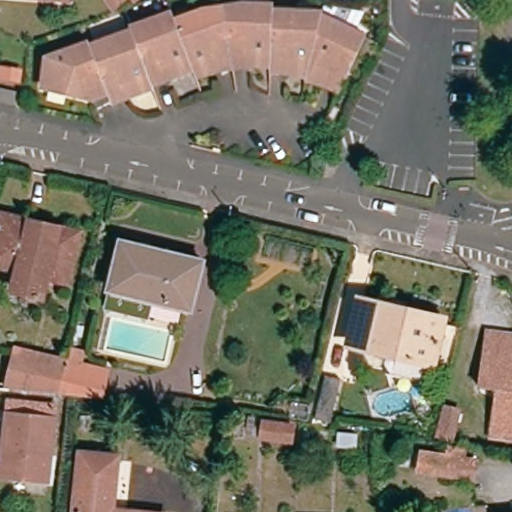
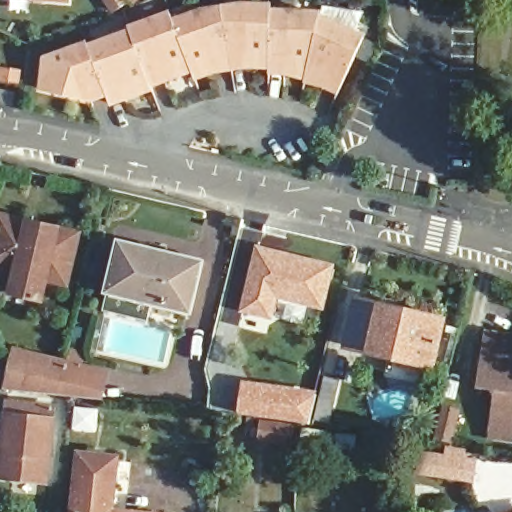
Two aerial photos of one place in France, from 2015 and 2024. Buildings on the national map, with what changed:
unchanged [(49,3),(32,0),(69,0),(68,6),(49,3)]
unchanged [(120,0),(128,12),(117,19),(108,6),(117,0),(120,0)]
unchanged [(39,93),(44,62),(86,46),(88,51),(128,36),(127,31),(168,14),(171,23),(199,13),(241,6),(269,9),(268,15),(315,18),(317,11),(357,17),(349,37),(355,40),(327,94),(315,89),(297,81),(279,76),(263,75),(264,68),(241,67),(238,66),(211,70),(190,74),(167,82),(149,89),(151,96),(128,105),(110,111),(97,116),(81,110),(78,101),(39,93)]
unchanged [(19,86),(0,83),(1,71),(21,73),(19,86)]
unchanged [(7,87),(6,99),(0,99),(0,87),(7,87)]
unchanged [(80,239),(69,289),(46,284),(42,304),(15,298),(19,277),(0,272),(0,232),(3,221),(80,239)]
new [(255,243),(336,263),(324,311),(278,302),(273,320),(237,312),(255,243)]
unchanged [(201,269),(190,312),(113,295),(123,251),(201,269)]
unchanged [(444,329),(434,372),(350,351),(361,307),(444,329)]
unchanged [(512,428),(511,427),(509,442),(487,439),(494,389),(476,387),(484,334),(512,338),(512,428)]
unchanged [(6,393),(16,353),(71,366),(63,399),(6,393)]
unchanged [(71,366),(112,376),(105,403),(63,399),(71,366)]
unchanged [(326,377),(342,381),(332,423),(316,419),(326,377)]
new [(310,424),(237,413),(241,380),(316,390),(310,424)]
unchanged [(444,406),(463,411),(454,444),(437,439),(444,406)]
unchanged [(56,412),(49,488),(1,482),(9,408),(56,412)]
unchanged [(295,427),(293,445),(261,441),(263,422),(295,427)]
unchanged [(422,453),(448,457),(449,449),(467,451),(465,459),(478,461),(475,482),(419,474),(422,453)]
unchanged [(77,455),(114,458),(109,512),(71,512),(77,455)]

